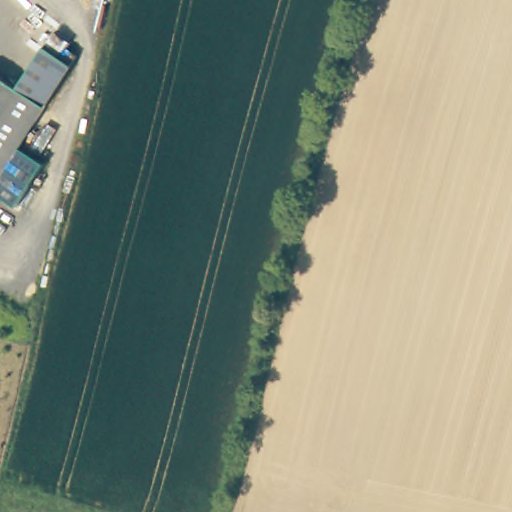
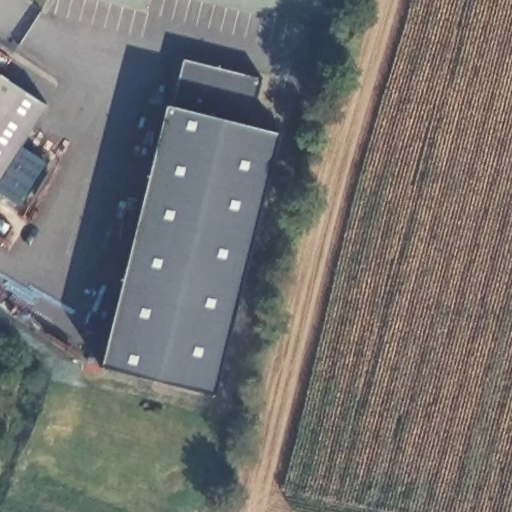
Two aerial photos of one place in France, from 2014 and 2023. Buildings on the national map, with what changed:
new [(262,80),(251,126),(280,135),(215,395),(101,366),(166,106),(172,107),(184,60),(262,80)]
unchanged [(49,102),(0,179),(0,71),(21,85),(49,102)]
new [(18,205),(0,193),(0,179),(20,146),(45,161),(18,205)]

